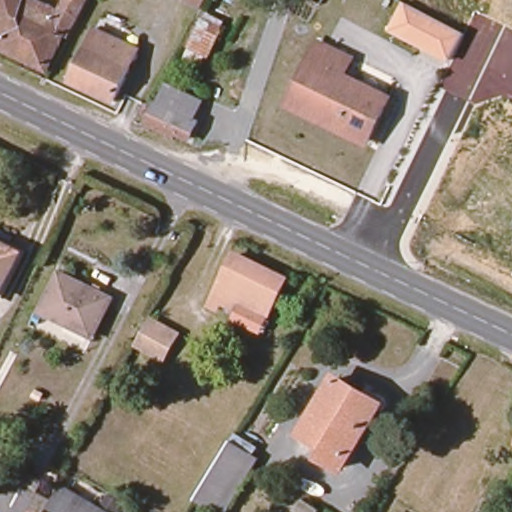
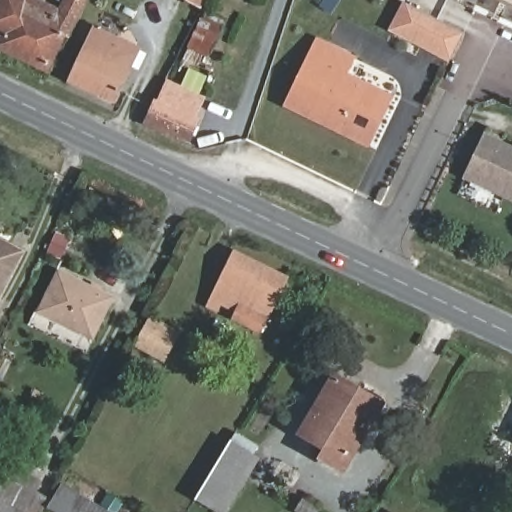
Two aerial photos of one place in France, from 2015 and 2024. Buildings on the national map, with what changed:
unchanged [(65,0),(85,0),(67,34),(64,33),(47,70),(0,49),(0,38),(1,36),(0,36),(0,0),(31,0),(58,13),(65,0)]
unchanged [(180,0),(212,0),(205,13),(180,0)]
new [(512,0),(512,5),(502,0),(512,0)]
unchanged [(466,33),(451,63),(389,31),(403,1),(466,33)]
unchanged [(227,21),(202,71),(187,64),(211,14),(227,21)]
unchanged [(137,48),(114,100),(70,80),(94,29),(137,48)]
unchanged [(334,129),(291,108),(323,44),(356,62),(348,80),(391,101),(381,121),(368,146),(334,129)]
unchanged [(156,104),(165,85),(200,101),(192,120),(195,122),(187,139),(174,134),(172,137),(144,124),(152,103),(156,104)]
new [(485,133),(512,145),(512,202),(463,179),(485,133)]
unchanged [(18,254),(0,288),(0,245),(18,254)]
unchanged [(218,310),(208,306),(234,254),(284,278),(258,330),(234,318),(237,312),(221,304),(218,310)]
unchanged [(44,314),(61,279),(113,303),(94,339),(44,314)]
unchanged [(151,321),(181,337),(167,364),(137,348),(151,321)]
unchanged [(382,408),(344,474),(326,463),(331,454),(308,439),(341,384),(382,408)]
unchanged [(259,463),(230,512),(217,512),(200,502),(233,447),(259,463)]
unchanged [(6,476),(26,486),(40,493),(29,512),(0,512),(0,487),(6,476)]
unchanged [(104,512),(63,512),(74,494),(104,512)]
unchanged [(318,509),(316,512),(298,512),(295,510),(302,499),(318,509)]

